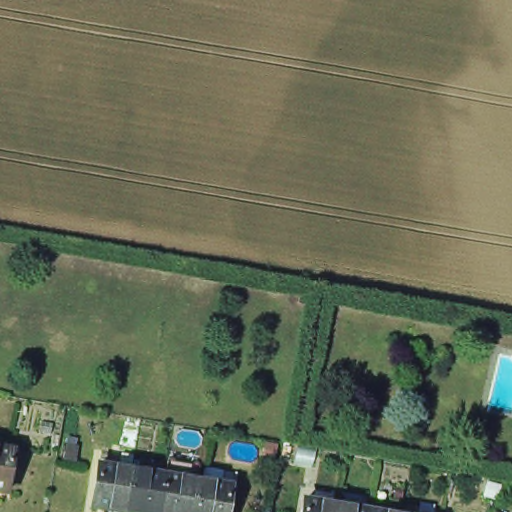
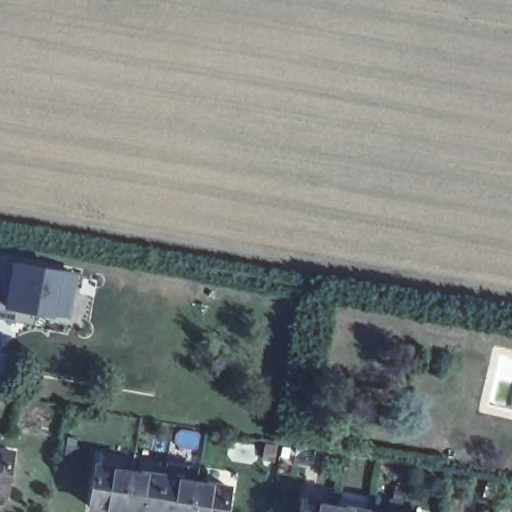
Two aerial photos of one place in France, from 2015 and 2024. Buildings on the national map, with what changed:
new [(54,300),(52,314),(35,312),(33,320),(0,314),(0,260),(18,263),(17,265),(75,275),(70,303),(54,300)]
unchanged [(0,497),(0,454),(8,455),(0,497)]
unchanged [(92,506),(100,463),(131,469),(124,512),(92,506)]
unchanged [(157,512),(127,512),(124,512),(131,469),(164,475),(157,512)]
unchanged [(164,475),(196,481),(190,512),(157,512),(164,475)]
unchanged [(227,486),(223,512),(190,512),(196,481),(227,486)]
unchanged [(329,512),(299,512),(302,492),(332,497),(329,512)]
unchanged [(332,497),(365,502),(364,512),(329,512),(332,497)]
unchanged [(396,512),(364,512),(365,502),(397,507),(396,512)]
unchanged [(397,507),(426,512),(396,512),(397,507)]
unchanged [(500,512),(496,512),(497,510),(500,512)]

